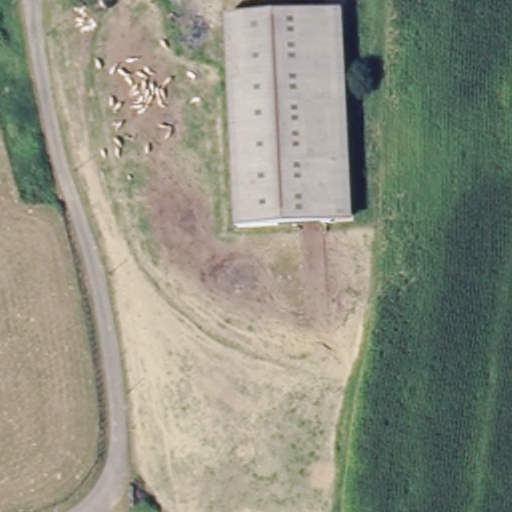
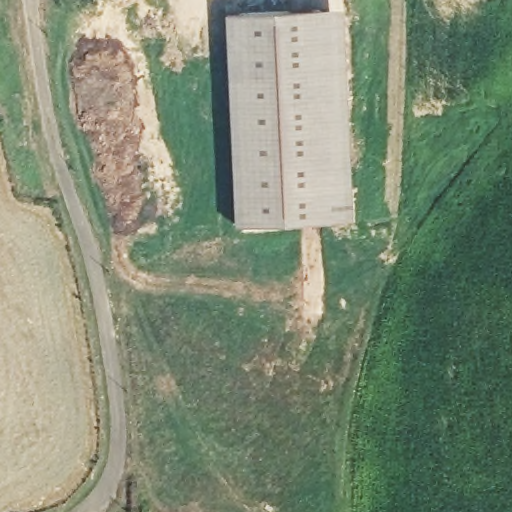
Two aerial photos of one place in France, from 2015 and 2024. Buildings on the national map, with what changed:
unchanged [(344,10),(350,218),(326,219),(322,11),(344,10)]
unchanged [(229,223),(228,15),(322,11),(326,219),(229,223)]

